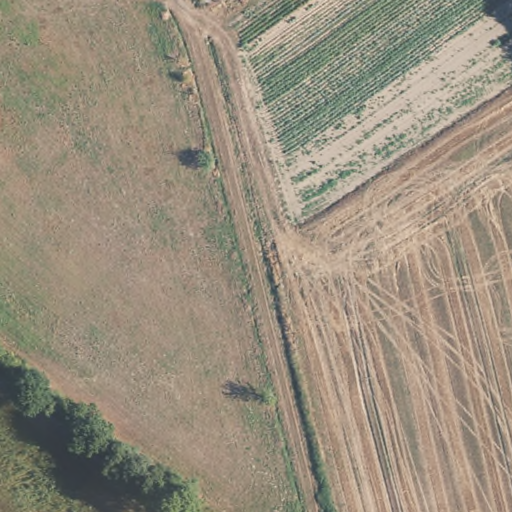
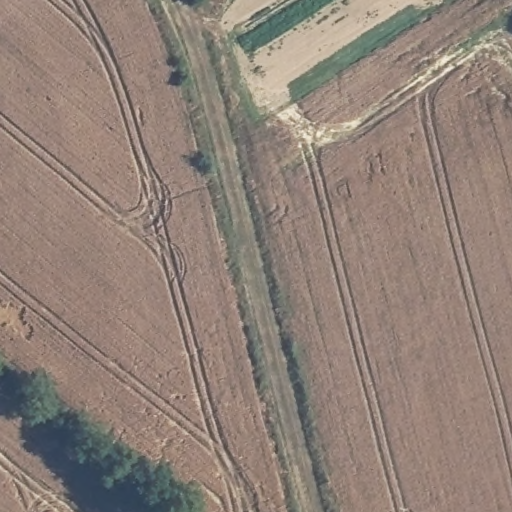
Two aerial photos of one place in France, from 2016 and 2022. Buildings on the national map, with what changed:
[]

